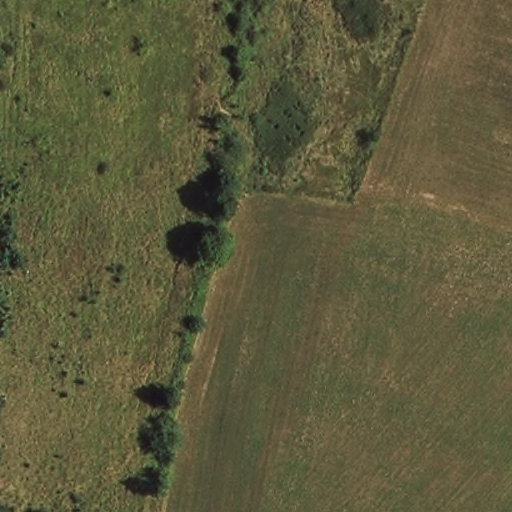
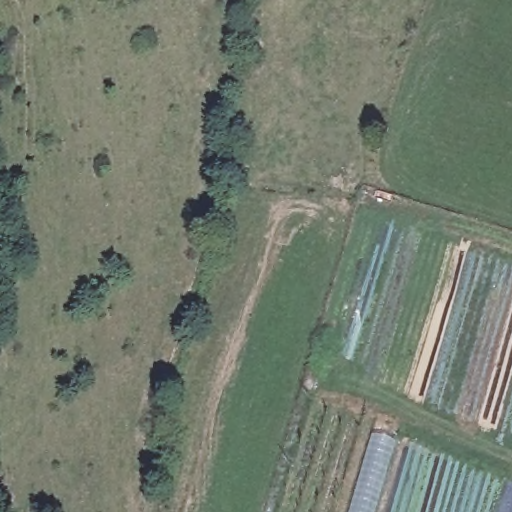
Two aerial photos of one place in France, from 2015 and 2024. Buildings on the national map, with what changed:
new [(397,443),(377,512),(350,512),(373,434),(397,443)]

